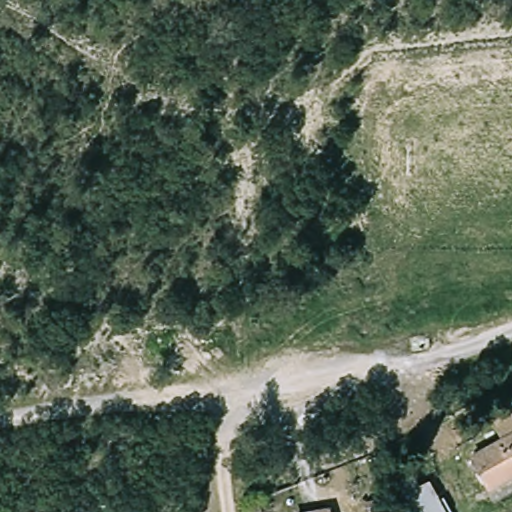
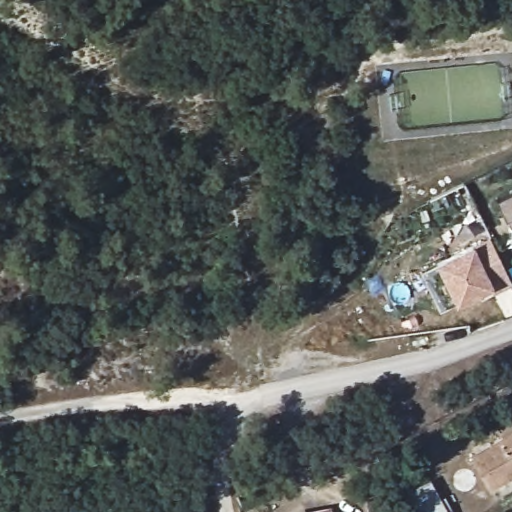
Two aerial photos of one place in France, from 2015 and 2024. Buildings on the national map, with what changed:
new [(496,201),(512,193),(512,218),(505,220),(496,201)]
new [(512,284),(493,294),(491,288),(456,306),(455,303),(440,311),(420,272),(435,263),(472,245),(489,237),(512,284)]
unchanged [(477,453),(502,445),(493,425),(512,416),(512,483),(488,490),(477,453)]
unchanged [(437,478),(449,512),(413,512),(406,488),(437,478)]

